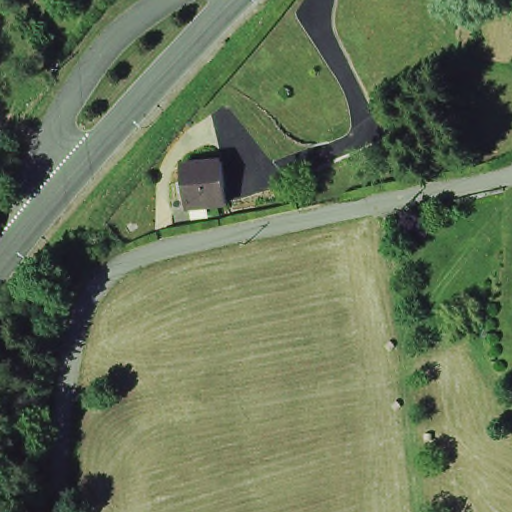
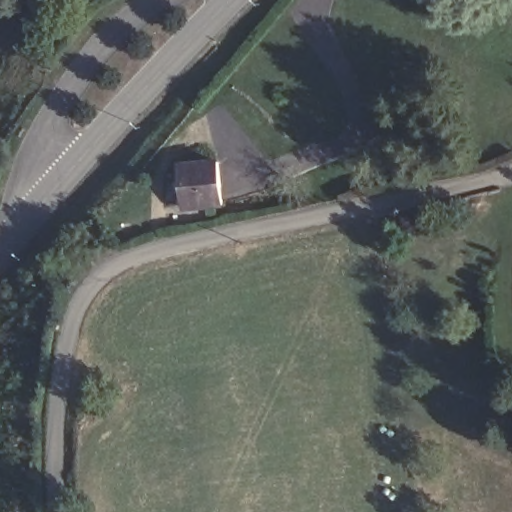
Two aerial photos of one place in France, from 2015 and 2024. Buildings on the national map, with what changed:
unchanged [(180,166),(218,163),(222,205),(183,209),(180,166)]

